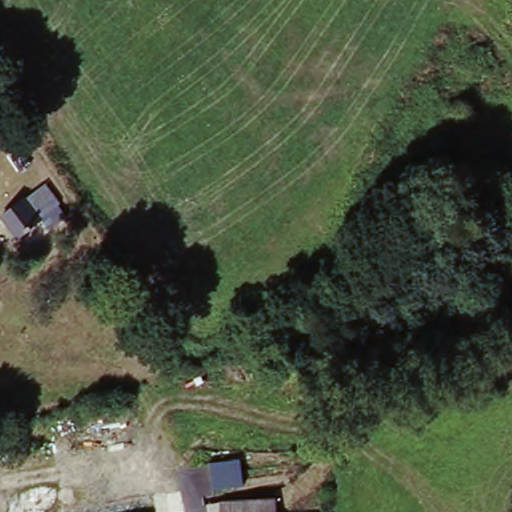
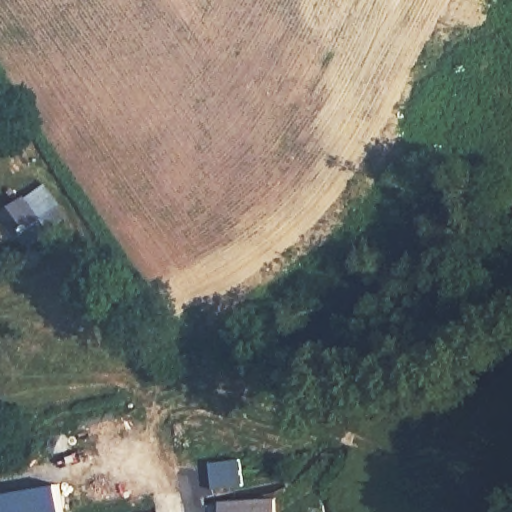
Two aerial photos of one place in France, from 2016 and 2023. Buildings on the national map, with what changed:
unchanged [(0,146),(0,111),(18,130),(0,146)]
unchanged [(26,200),(44,186),(59,206),(41,220),(42,222),(20,238),(3,216),(25,199),(26,200)]
new [(63,512),(0,512),(0,495),(59,486),(63,512)]
unchanged [(282,512),(228,512),(228,503),(282,499),(282,512)]

